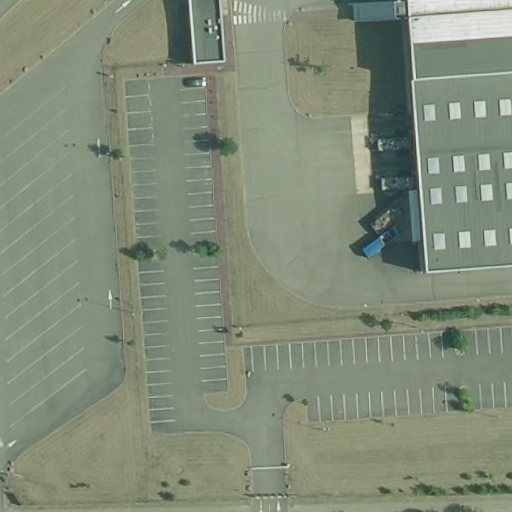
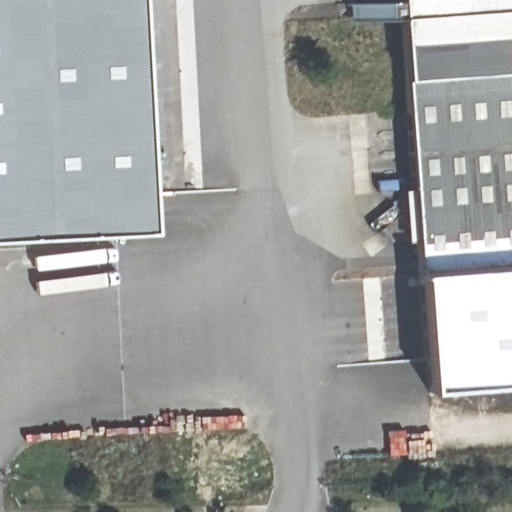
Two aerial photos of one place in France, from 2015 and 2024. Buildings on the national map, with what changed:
new [(0,239),(0,0),(139,0),(153,235),(0,239)]
unchanged [(184,0),(215,0),(218,61),(188,64),(184,0)]
unchanged [(412,191),(399,17),(344,22),(344,3),(398,1),(398,0),(512,0),(512,265),(419,272),(416,240),(407,240),(404,191),(412,191)]
new [(512,374),(425,378),(419,272),(512,265),(512,374)]

